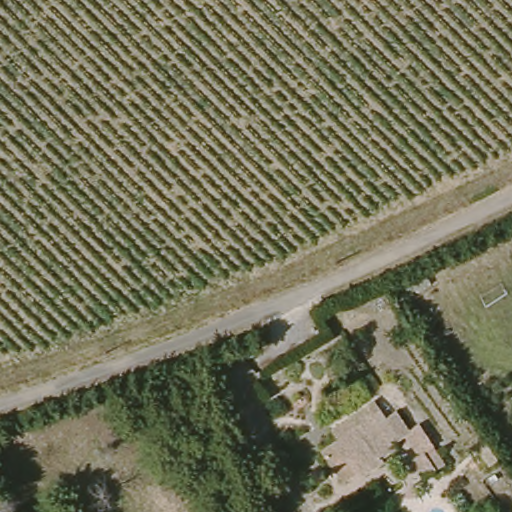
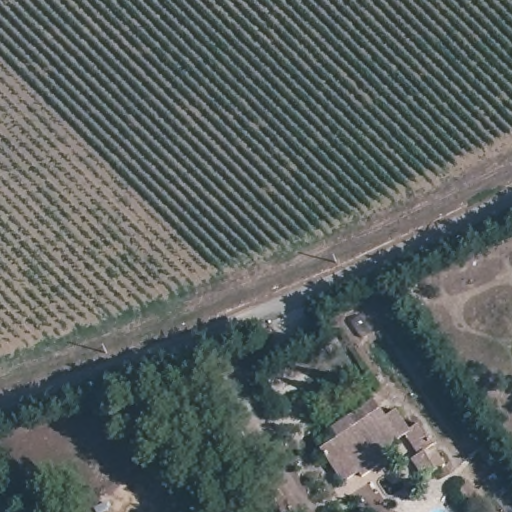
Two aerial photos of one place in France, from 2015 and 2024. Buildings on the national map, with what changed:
unchanged [(410,461),(418,456),(403,436),(394,442),(398,447),(380,460),(383,464),(362,477),(359,473),(343,485),(320,451),(375,413),(381,422),(397,411),(411,429),(419,423),(445,465),(436,471),(423,480),(410,461)]

